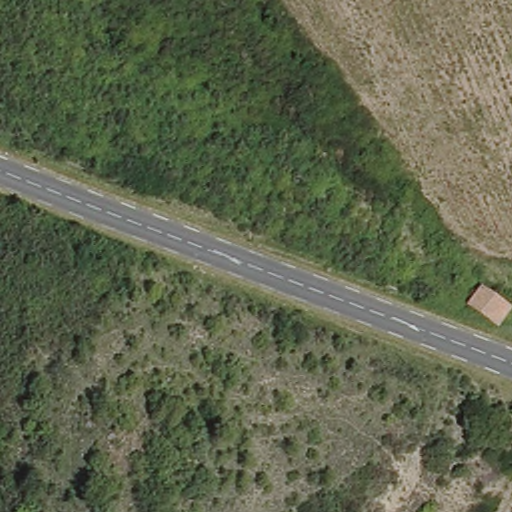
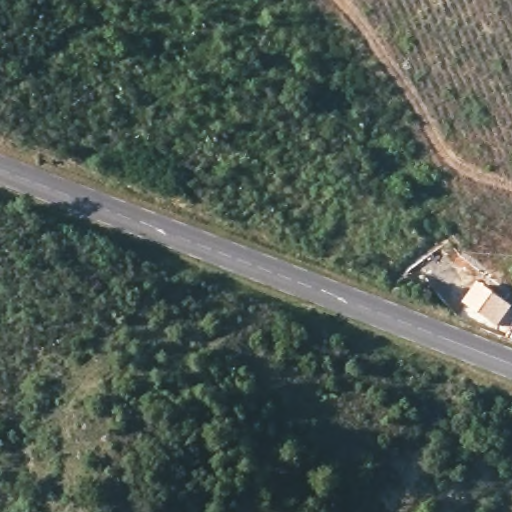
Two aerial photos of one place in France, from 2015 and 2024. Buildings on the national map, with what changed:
unchanged [(512,299),(512,302),(494,330),(463,309),(484,281),(512,299)]

